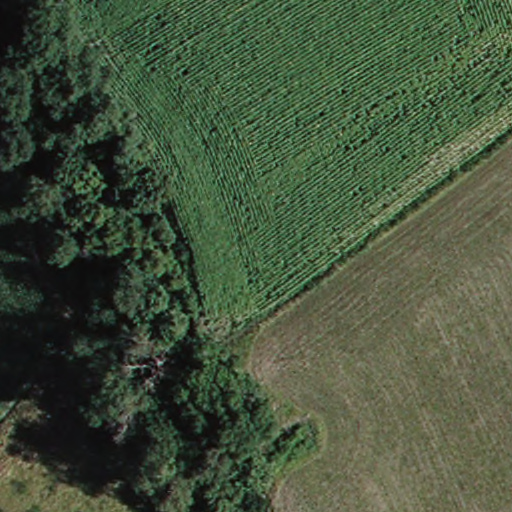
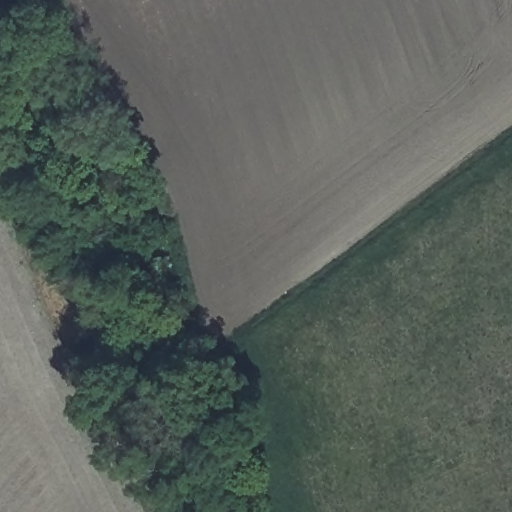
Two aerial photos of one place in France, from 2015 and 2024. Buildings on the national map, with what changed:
[]

